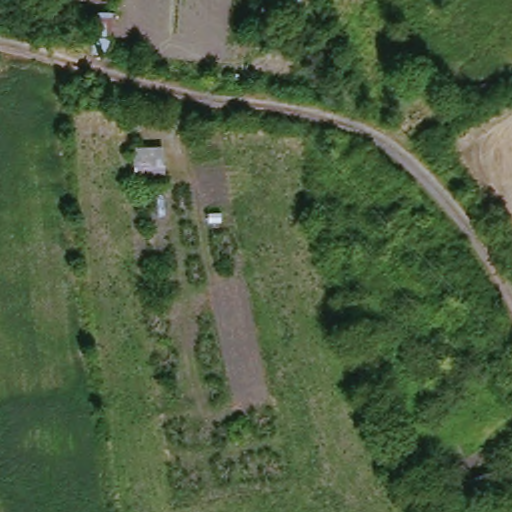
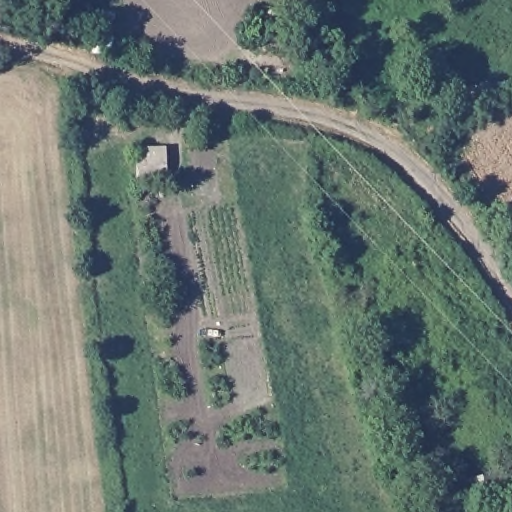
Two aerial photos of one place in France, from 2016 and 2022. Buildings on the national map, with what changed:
unchanged [(162,141),(164,183),(131,182),(130,145),(162,141)]

